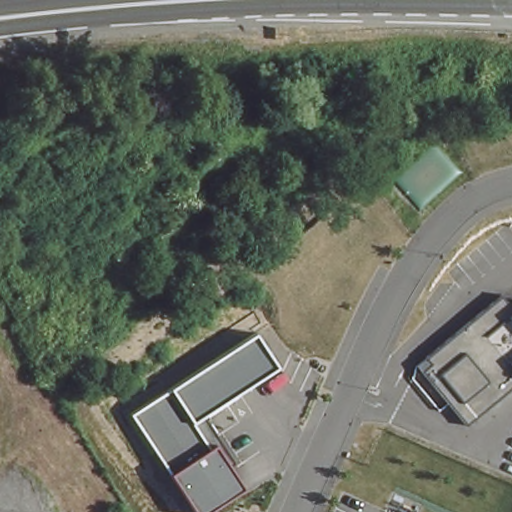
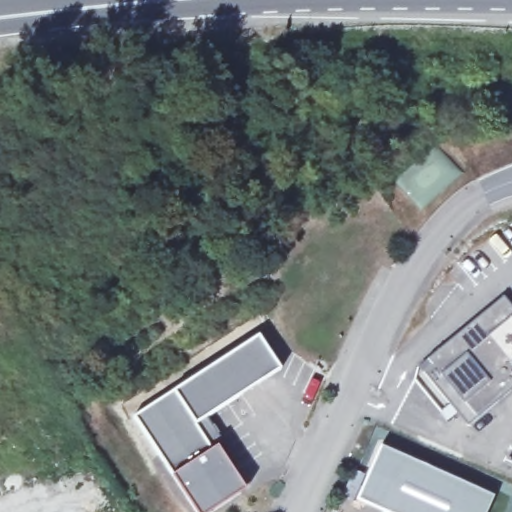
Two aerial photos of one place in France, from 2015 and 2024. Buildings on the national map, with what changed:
unchanged [(420,365),(505,297),(512,305),(512,392),(469,426),(420,365)]
unchanged [(282,369),(208,416),(240,468),(235,471),(247,492),(218,512),(196,512),(172,476),(135,416),(261,335),(282,369)]
new [(381,441),(495,493),(487,512),(391,512),(357,496),(381,441)]

